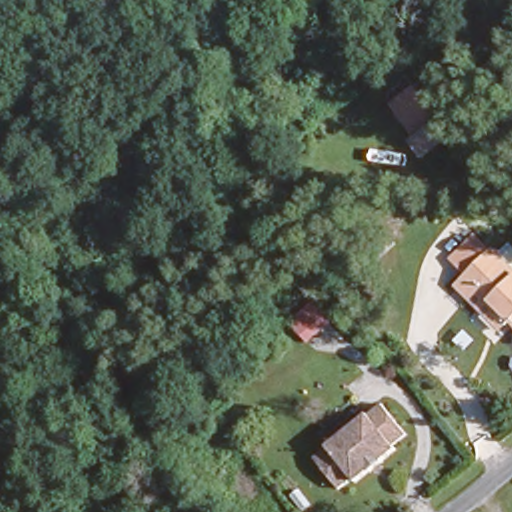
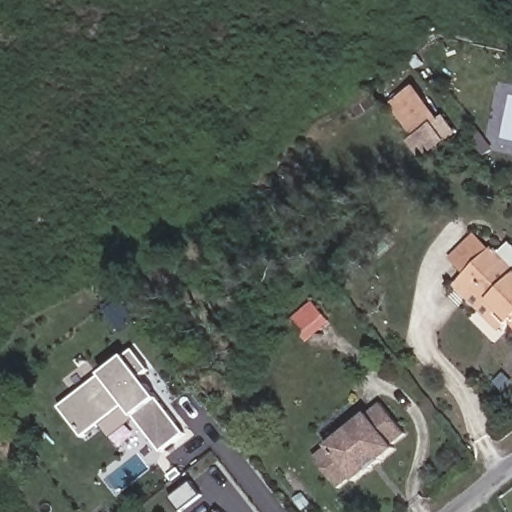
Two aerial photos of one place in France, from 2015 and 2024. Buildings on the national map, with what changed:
unchanged [(425,163),(408,141),(414,139),(391,106),(418,86),(455,136),(425,163)]
unchanged [(490,247),(502,258),(507,252),(512,256),(512,273),(512,324),(507,318),(493,328),(452,284),(463,273),(490,247)]
unchanged [(332,325),(307,345),(291,327),(317,306),(332,325)]
new [(135,348),(151,368),(142,375),(186,432),(162,451),(126,404),(84,436),(60,406),(135,348)]
unchanged [(382,401),(403,427),(390,437),(396,445),(358,474),(353,469),(337,482),(312,455),(382,401)]

